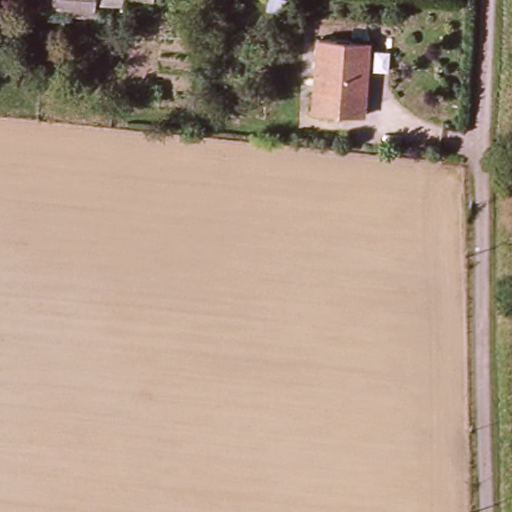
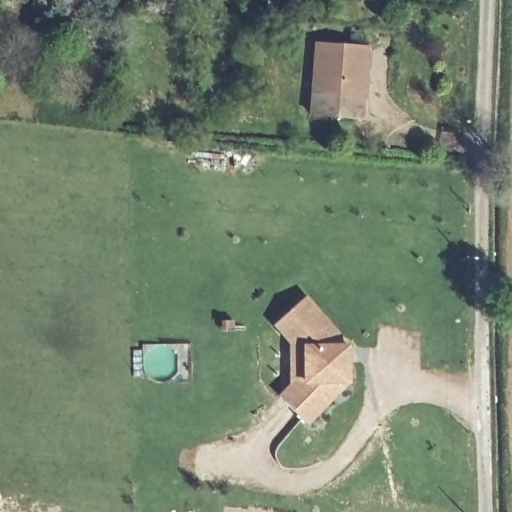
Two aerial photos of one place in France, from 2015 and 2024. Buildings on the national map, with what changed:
unchanged [(39,9),(39,0),(95,0),(95,15),(39,9)]
unchanged [(364,119),(312,119),(315,45),(366,45),(364,119)]
new [(351,344),(351,385),(310,427),(278,395),(290,384),(291,345),(273,325),(306,296),(351,344)]

